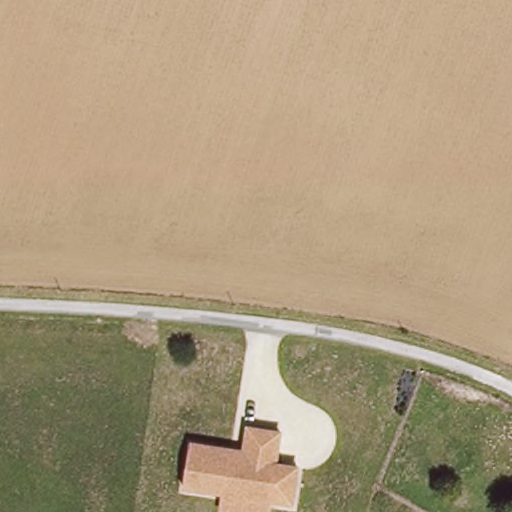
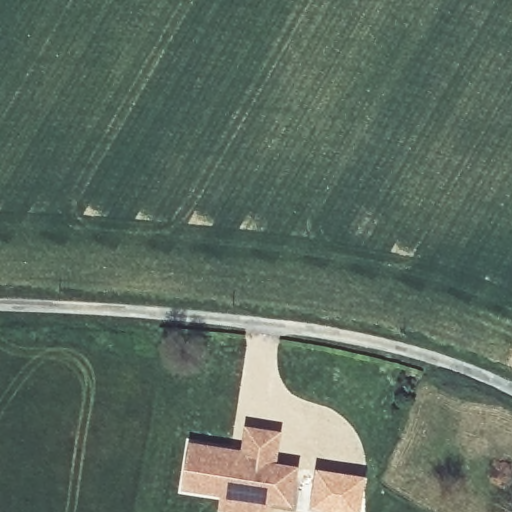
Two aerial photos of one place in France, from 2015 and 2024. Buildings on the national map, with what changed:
unchanged [(216,510),(219,496),(180,489),(188,443),(227,450),(239,452),(244,427),(276,433),(271,465),(292,468),(285,507),(264,503),(262,512),(225,512),(216,510)]
new [(315,469),(367,476),(362,512),(309,512),(308,512),(315,469)]

